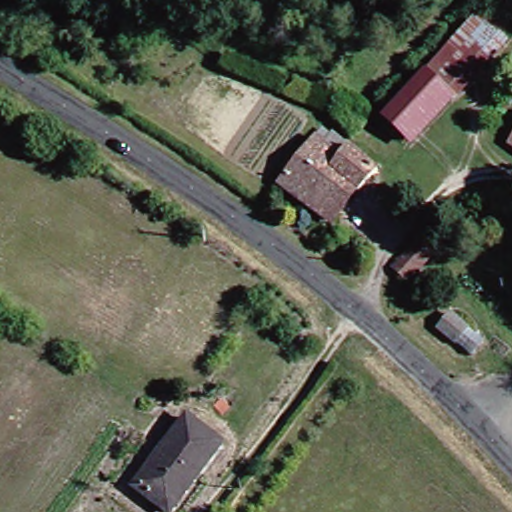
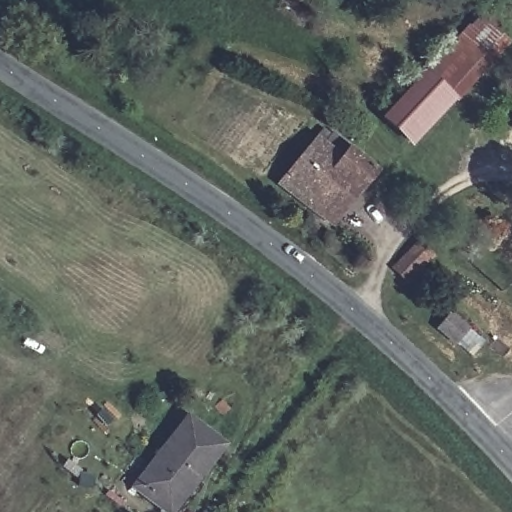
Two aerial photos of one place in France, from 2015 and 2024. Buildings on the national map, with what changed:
unchanged [(481,16),(500,34),(446,98),(427,79),(481,16)]
unchanged [(406,146),(386,128),(427,79),(446,98),(406,146)]
unchanged [(512,121),(512,156),(495,142),(512,121)]
unchanged [(306,211),(275,183),(305,147),(319,158),(332,141),(368,169),(345,195),(321,223),(306,211)]
unchanged [(433,263),(447,277),(423,302),(409,289),(433,263)]
unchanged [(159,512),(127,489),(163,438),(175,422),(211,448),(163,512),(159,512)]

